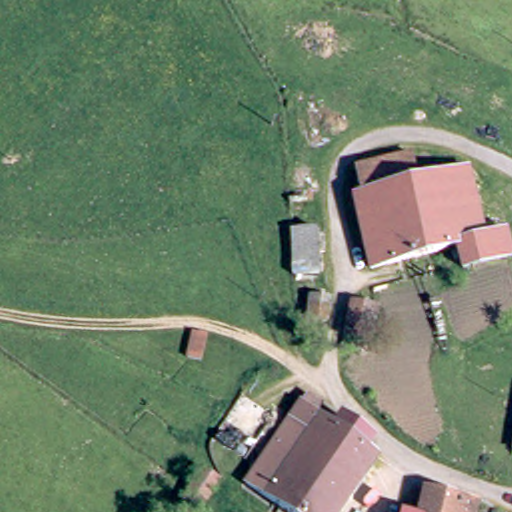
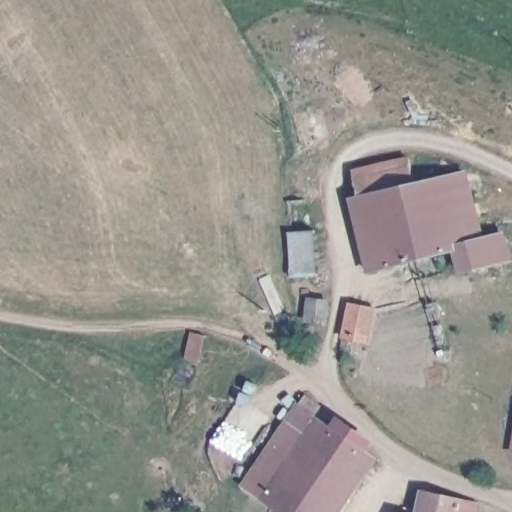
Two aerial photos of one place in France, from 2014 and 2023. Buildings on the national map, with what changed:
unchanged [(417,191),(472,180),(485,241),(510,235),(512,241),(512,264),(465,275),(460,252),(368,272),(353,204),(363,200),(357,178),(370,175),(412,166),(417,191)]
unchanged [(311,233),(320,233),(322,279),(295,280),(293,234),(311,233)]
unchanged [(382,305),(375,339),(365,336),(362,351),(347,348),(358,300),(382,305)]
unchanged [(192,330),(210,335),(202,362),(184,356),(192,330)]
unchanged [(309,421),(335,440),(375,466),(343,512),(270,512),(242,496),(300,405),(303,406),(314,412),(309,421)]
unchanged [(425,488),(477,502),(475,512),(418,512),(425,488)]
unchanged [(399,509),(412,512),(398,512),(399,509)]

